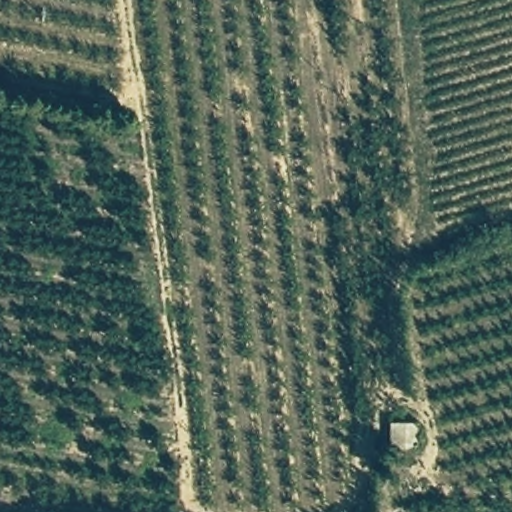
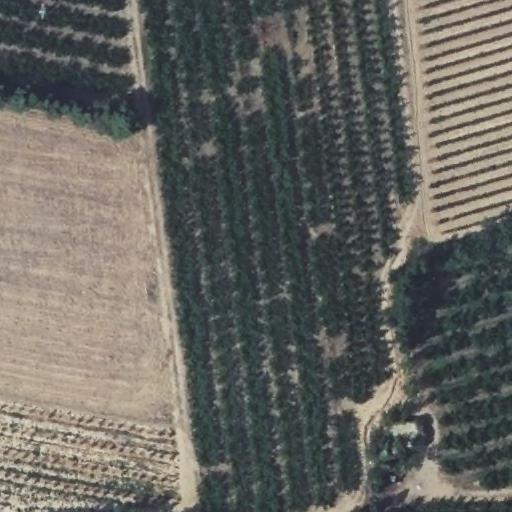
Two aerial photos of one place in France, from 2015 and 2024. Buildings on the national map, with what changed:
unchanged [(417,427),(416,449),(389,449),(390,427),(417,427)]

